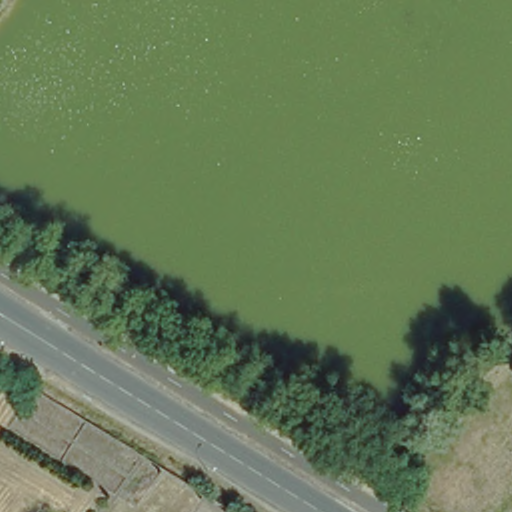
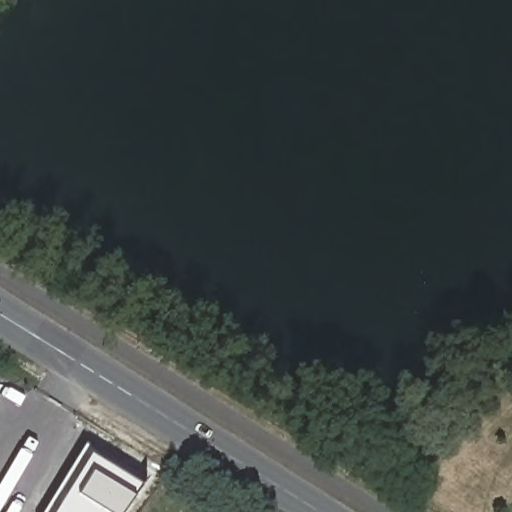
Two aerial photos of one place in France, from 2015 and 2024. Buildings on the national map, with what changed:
new [(141,484),(132,497),(122,512),(42,512),(83,448),(91,455),(141,484)]

